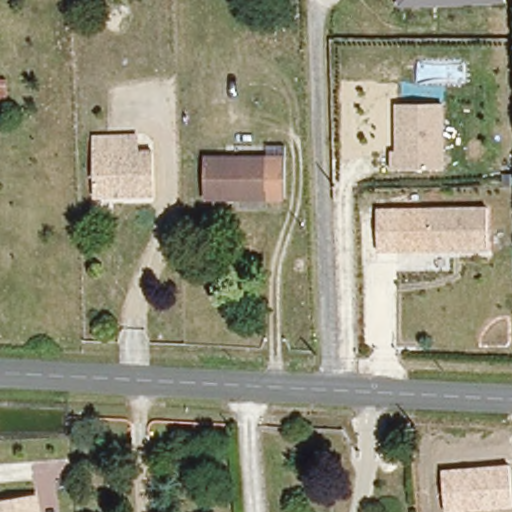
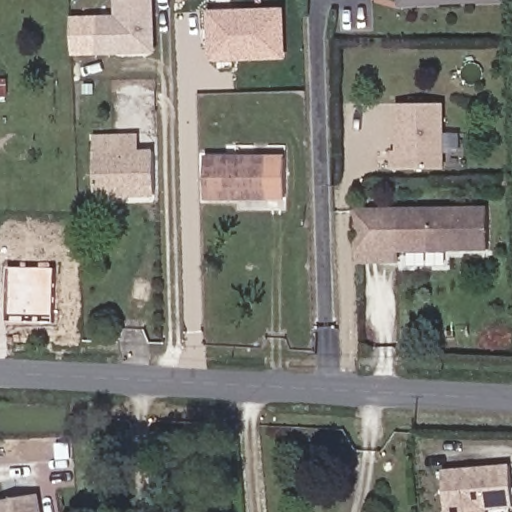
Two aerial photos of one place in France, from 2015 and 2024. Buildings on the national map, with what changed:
new [(114,0),(150,0),(152,51),(97,52),(96,19),(116,19),(114,0)]
unchanged [(505,0),(506,1),(401,6),(401,0),(505,0)]
new [(209,62),(207,11),(286,8),(287,59),(209,62)]
unchanged [(15,27),(22,27),(22,39),(15,38),(15,27)]
unchanged [(392,168),(392,149),(398,149),(398,103),(446,103),(446,169),(392,168)]
unchanged [(115,135),(115,153),(155,152),(156,195),(92,195),(91,135),(115,135)]
unchanged [(204,156),(287,153),(288,194),(205,196),(204,156)]
unchanged [(489,248),(400,249),(397,215),(430,215),(428,207),(487,206),(489,248)]
new [(400,263),(356,263),(354,208),(428,207),(430,215),(397,215),(400,249),(400,263)]
new [(57,268),(56,322),(8,320),(9,267),(57,268)]
unchanged [(512,491),(512,508),(458,512),(446,512),(442,470),(510,464),(512,491)]
unchanged [(0,501),(37,494),(40,512),(0,512),(0,501)]

